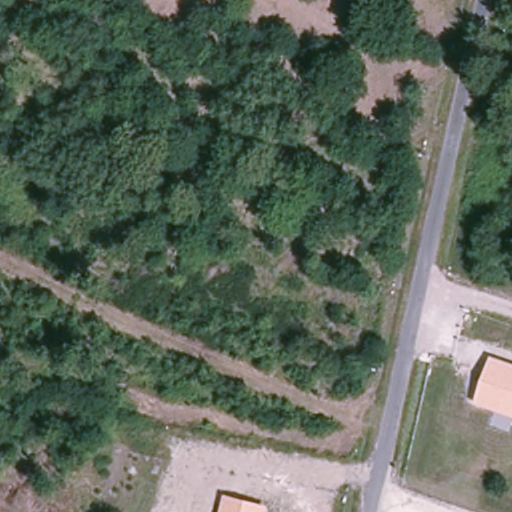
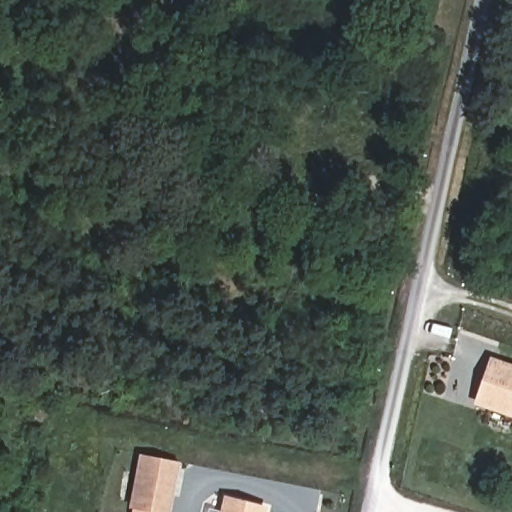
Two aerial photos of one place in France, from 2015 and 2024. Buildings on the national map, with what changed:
unchanged [(490,357),(512,365),(512,413),(475,401),(490,357)]
new [(182,463),(172,512),(147,512),(131,509),(141,455),(182,463)]
unchanged [(270,512),(224,512),(229,495),(271,507),(270,512)]

